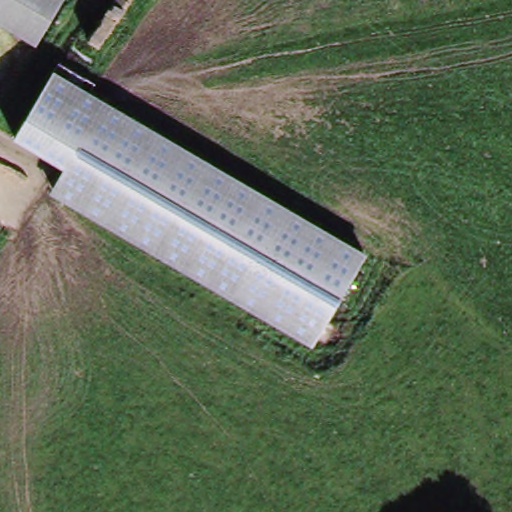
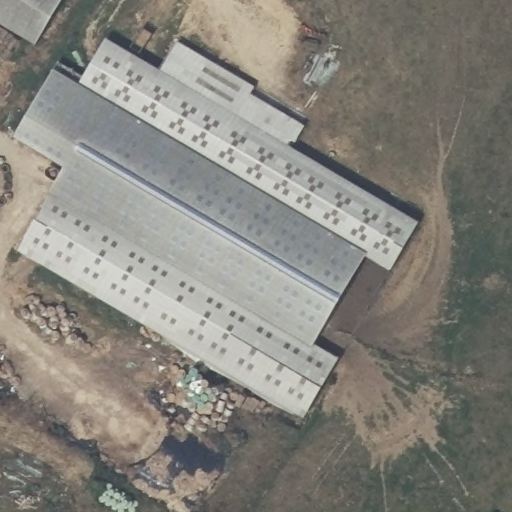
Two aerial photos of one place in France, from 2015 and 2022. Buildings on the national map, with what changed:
unchanged [(0,24),(0,0),(74,0),(43,49),(0,24)]
new [(88,90),(93,81),(115,43),(427,224),(400,272),(367,254),(88,90)]
unchanged [(93,81),(88,90),(367,254),(313,346),(49,192),(63,169),(13,139),(56,60),(93,81)]
new [(313,346),(333,359),(298,419),(12,253),(49,192),(313,346)]

